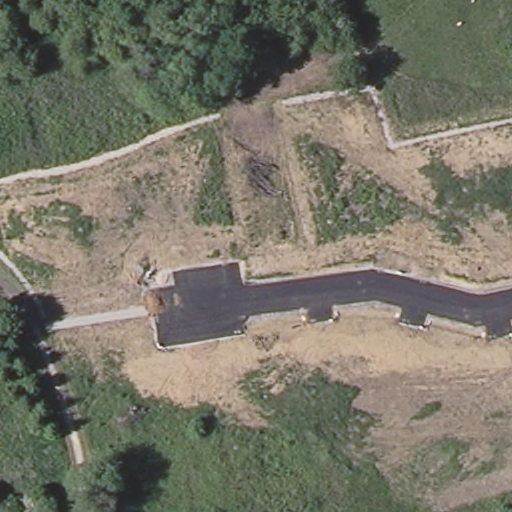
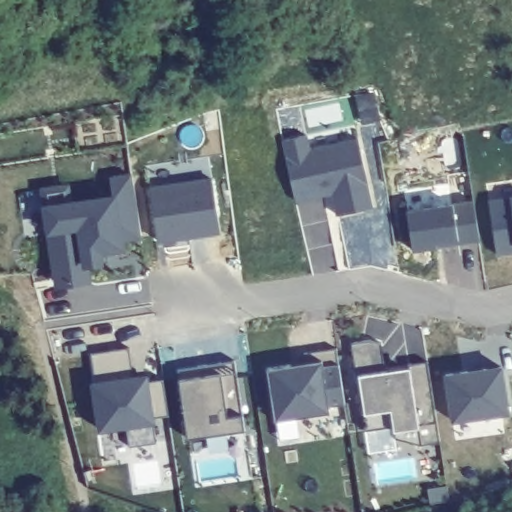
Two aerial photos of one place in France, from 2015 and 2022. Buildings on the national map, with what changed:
new [(335,213),(330,194),(297,202),(283,140),(310,136),(312,147),(357,137),(373,207),(335,213)]
new [(159,241),(150,186),(212,177),(220,233),(159,241)]
new [(65,286),(64,281),(53,209),(50,191),(75,188),(77,205),(120,198),(118,181),(140,178),(149,237),(128,240),(129,249),(107,252),(109,263),(94,265),(95,277),(96,282),(65,286)]
new [(496,253),(488,200),(510,197),(512,197),(512,252),(496,253)]
new [(437,247),(414,250),(407,209),(452,202),(472,199),(479,240),(437,247)]
new [(421,443),(395,435),(394,429),(394,423),(365,428),(352,344),(371,341),(381,345),(385,371),(409,368),(408,364),(428,362),(440,440),(421,443)]
new [(129,446),(127,426),(99,430),(92,381),(96,380),(91,352),(130,347),(134,376),(147,374),(149,381),(162,380),(167,414),(152,415),(154,423),(155,442),(129,446)]
new [(336,348),(339,365),(343,401),(327,403),(329,411),(275,418),(267,367),(306,362),(305,353),(336,348)]
unchanged [(237,434),(195,440),(185,376),(185,371),(205,368),(242,363),(250,417),(252,432),(237,434)]
new [(452,421),(442,374),(502,365),(509,413),(452,421)]

